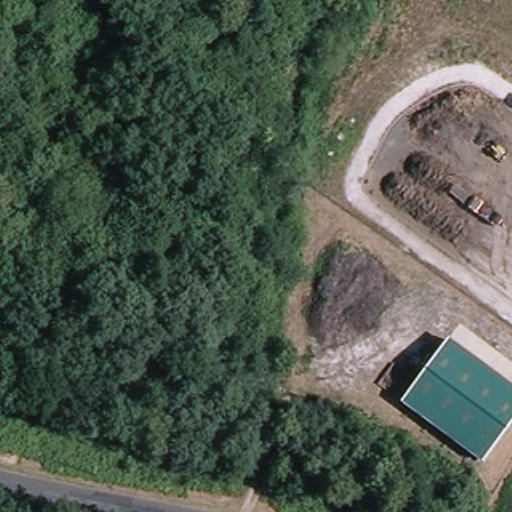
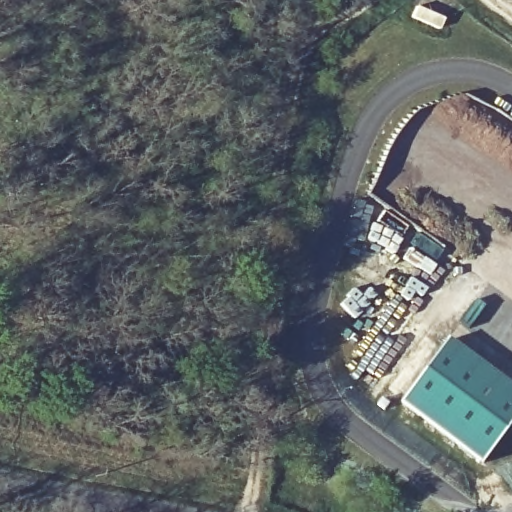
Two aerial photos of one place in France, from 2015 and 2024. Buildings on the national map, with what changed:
unchanged [(396,397),(443,337),(512,391),(512,417),(477,461),(396,397)]

